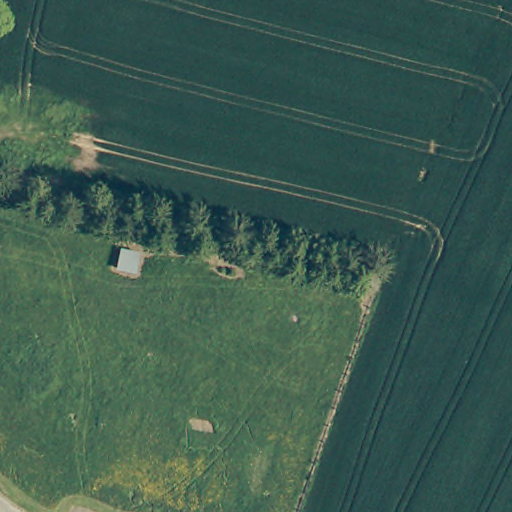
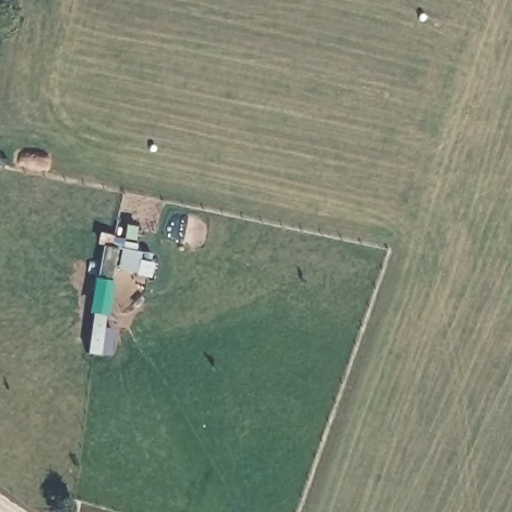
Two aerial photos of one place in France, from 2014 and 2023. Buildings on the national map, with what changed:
[]

